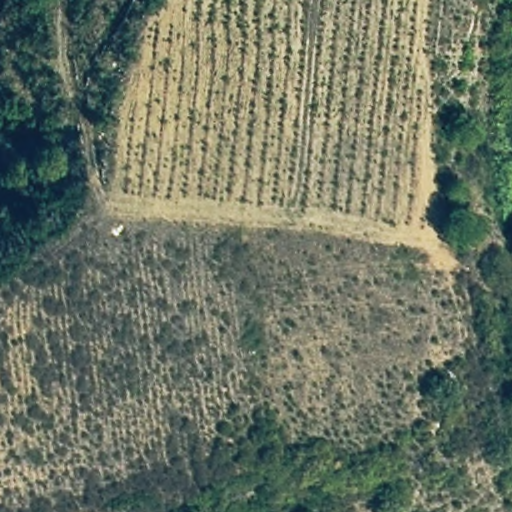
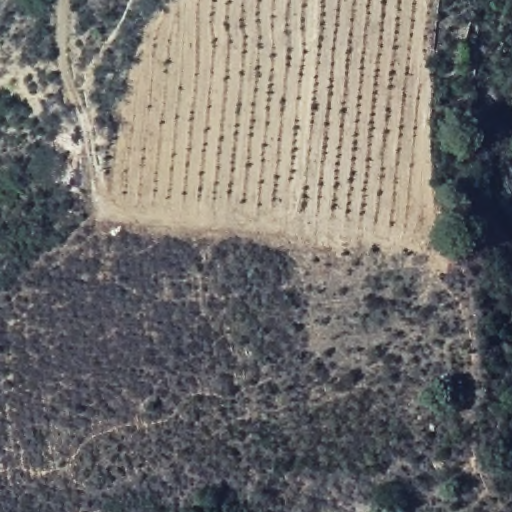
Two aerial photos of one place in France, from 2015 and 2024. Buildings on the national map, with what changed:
[]

